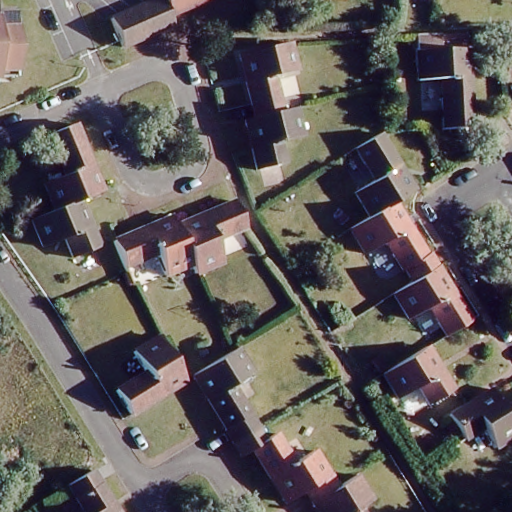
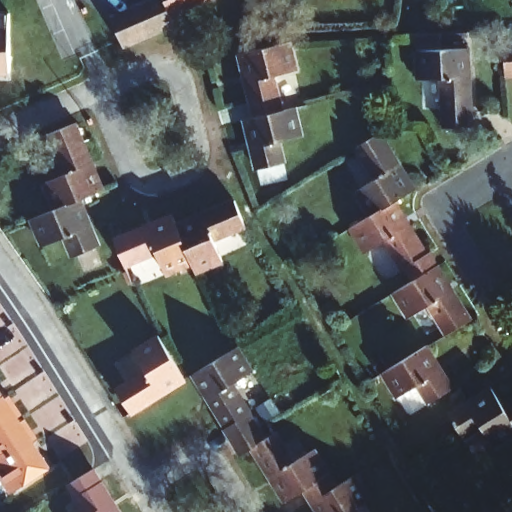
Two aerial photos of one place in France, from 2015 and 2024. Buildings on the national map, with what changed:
unchanged [(121,11),(135,5),(146,0),(198,0),(195,1),(182,6),(170,12),(175,21),(162,27),(149,33),(134,40),(121,46),(114,31),(107,17),(121,11)]
unchanged [(0,76),(0,18),(4,18),(7,18),(7,28),(5,76),(0,76)]
unchanged [(429,29),(432,29),(433,54),(460,52),(464,126),(436,127),(435,82),(410,82),(407,30),(429,29)]
unchanged [(512,39),(512,82),(502,82),(502,39),(512,39)]
unchanged [(243,100),(232,56),(282,46),(287,73),(266,78),(270,94),(271,94),(275,110),(287,107),(294,136),(272,141),(276,162),(248,168),(236,119),(247,116),(243,100)]
unchanged [(50,210),(38,182),(57,174),(47,153),(38,133),(57,124),(65,120),(75,141),(95,189),(72,199),(50,210)]
unchanged [(384,199),(362,213),(346,188),(359,180),(355,173),(356,172),(343,150),(369,135),(402,187),(396,191),(384,199)]
unchanged [(167,220),(222,196),(235,222),(206,235),(215,254),(187,265),(185,260),(167,220)]
unchanged [(72,199),(91,242),(67,253),(60,237),(39,247),(27,220),(50,210),(72,199)]
unchanged [(412,272),(406,276),(397,262),(394,265),(375,237),(357,248),(342,225),(362,213),(384,199),(415,246),(419,244),(430,261),(412,272)]
unchanged [(106,238),(165,213),(167,220),(185,260),(160,271),(150,250),(117,265),(106,238)]
unchanged [(470,324),(445,339),(427,308),(407,319),(389,287),(406,276),(412,272),(430,261),(470,324)]
unchanged [(165,382),(129,404),(115,380),(146,363),(134,341),(159,326),(184,370),(165,382)]
unchanged [(286,497),(254,444),(244,451),(235,436),(227,424),(192,365),(232,341),(249,368),(231,380),(249,410),(257,423),(263,435),(279,428),(295,456),(314,445),(329,470),(337,483),(355,472),(372,497),(352,509),(354,512),(322,512),(314,498),(305,485),(286,497)]
unchanged [(417,349),(444,390),(435,396),(421,404),(411,390),(390,402),(374,377),(417,349)]
unchanged [(499,404),(512,426),(512,433),(488,447),(474,425),(453,436),(440,416),(455,407),(488,387),(499,404)]
new [(0,388),(52,466),(9,493),(0,480),(0,388)]
unchanged [(499,404),(512,395),(512,426),(499,404)]
unchanged [(77,489),(71,478),(97,462),(104,474),(126,512),(80,512),(89,507),(77,489)]

